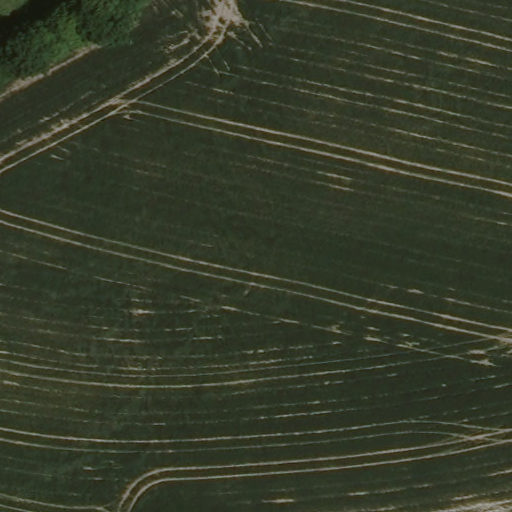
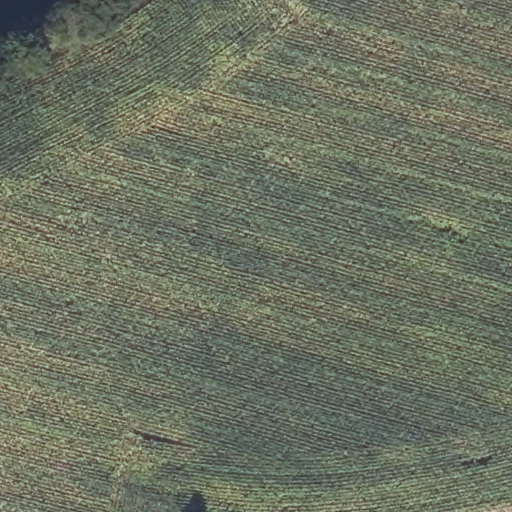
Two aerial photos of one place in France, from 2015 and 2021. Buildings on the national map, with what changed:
[]

